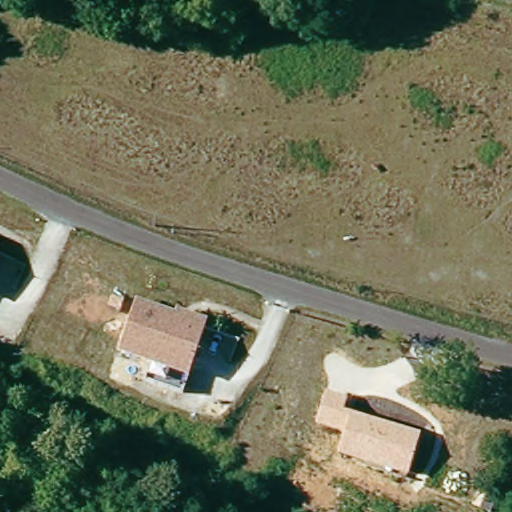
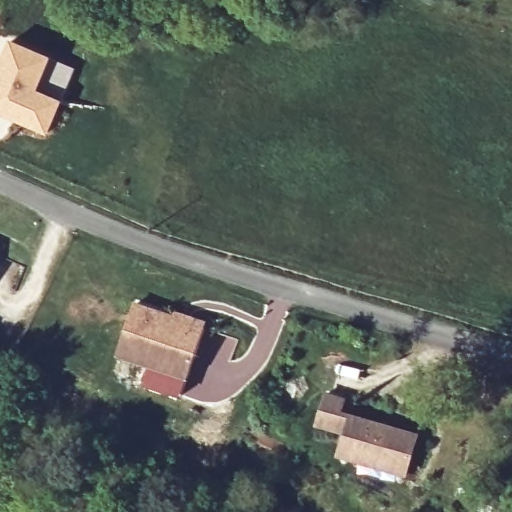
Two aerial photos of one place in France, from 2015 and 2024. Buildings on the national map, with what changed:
new [(42,56),(30,90),(55,102),(43,132),(16,121),(18,115),(0,106),(0,61),(8,42),(42,56)]
unchanged [(154,359),(123,349),(138,300),(208,322),(187,390),(181,389),(148,377),(154,359)]
unchanged [(342,435),(315,425),(327,392),(347,398),(343,412),(419,433),(407,476),(335,456),(342,435)]

